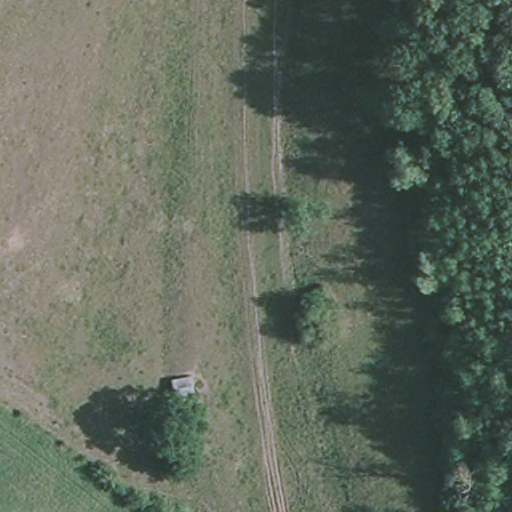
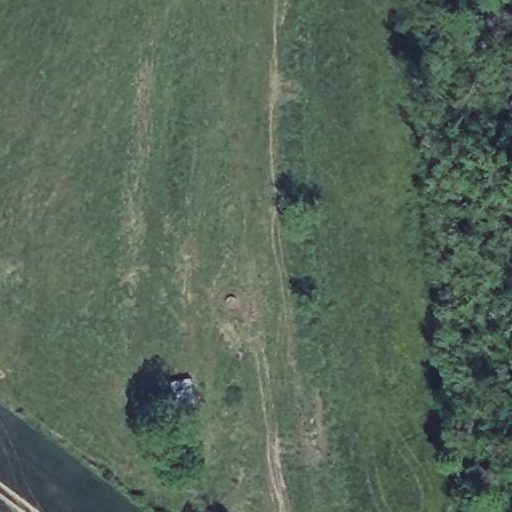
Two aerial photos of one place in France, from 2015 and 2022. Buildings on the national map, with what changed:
unchanged [(198,382),(201,410),(183,412),(178,386),(198,382)]

